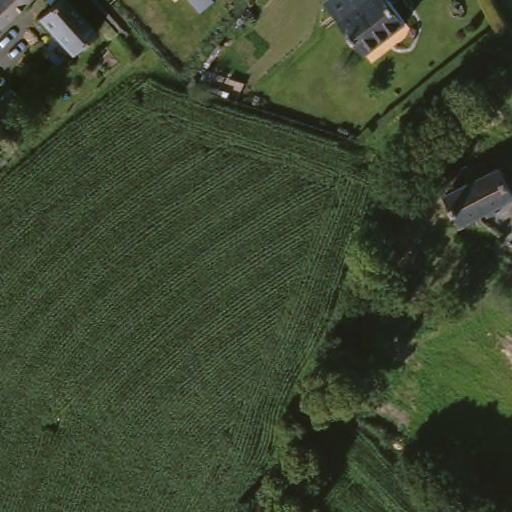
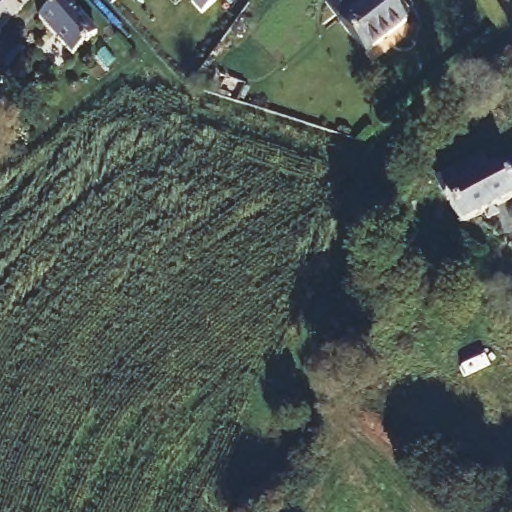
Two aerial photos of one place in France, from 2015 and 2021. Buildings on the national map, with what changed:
unchanged [(37,0),(0,27),(0,0),(37,0)]
unchanged [(45,16),(55,7),(49,1),(51,0),(71,0),(104,31),(81,52),(45,16)]
unchanged [(198,0),(224,0),(211,12),(198,0)]
unchanged [(369,51),(324,1),(326,0),(391,0),(406,18),(369,51)]
unchanged [(20,77),(33,90),(32,92),(13,115),(0,106),(0,99),(20,77)]
unchanged [(451,203),(443,190),(471,172),(474,175),(488,167),(494,176),(512,164),(512,202),(482,222),(469,229),(451,203)]

